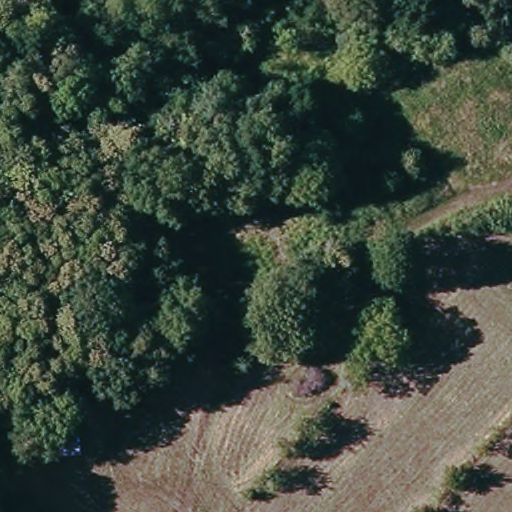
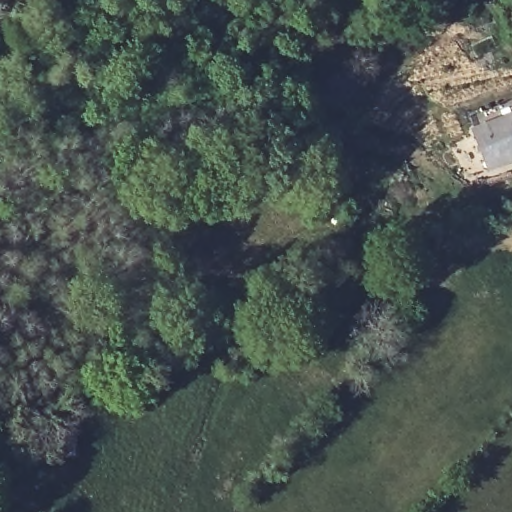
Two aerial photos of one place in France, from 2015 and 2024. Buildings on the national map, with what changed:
new [(512,111),(512,161),(487,170),(470,128),(512,111)]

